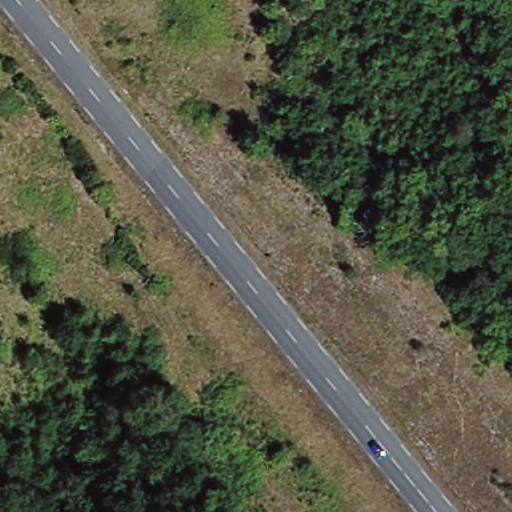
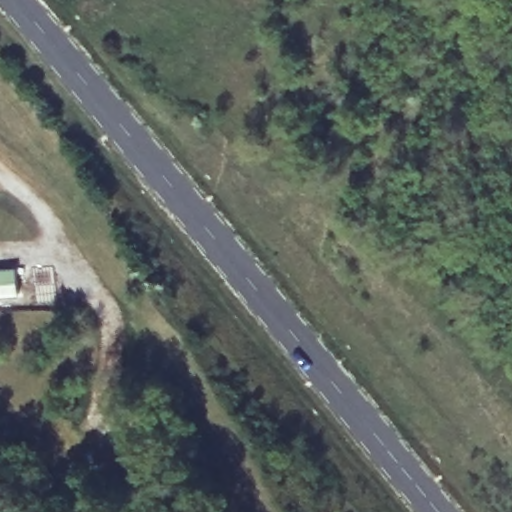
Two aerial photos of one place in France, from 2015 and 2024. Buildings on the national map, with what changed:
new [(15,268),(16,296),(0,297),(0,270),(15,268)]

